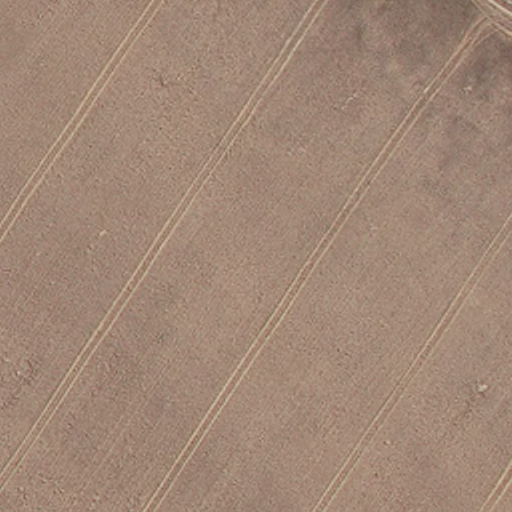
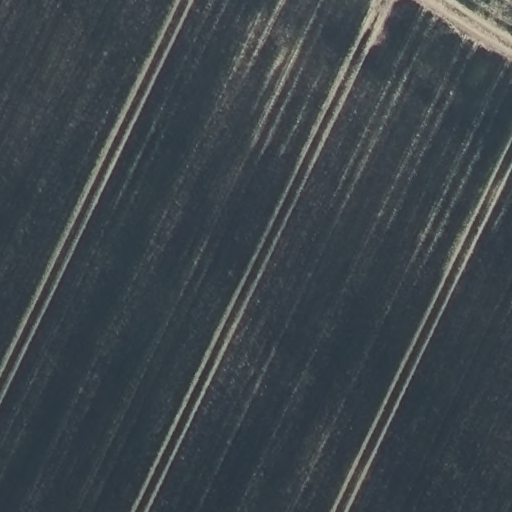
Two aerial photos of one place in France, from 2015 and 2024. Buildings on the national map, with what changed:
[]

